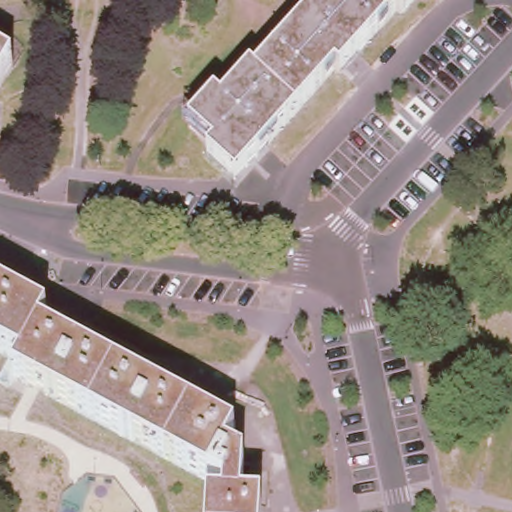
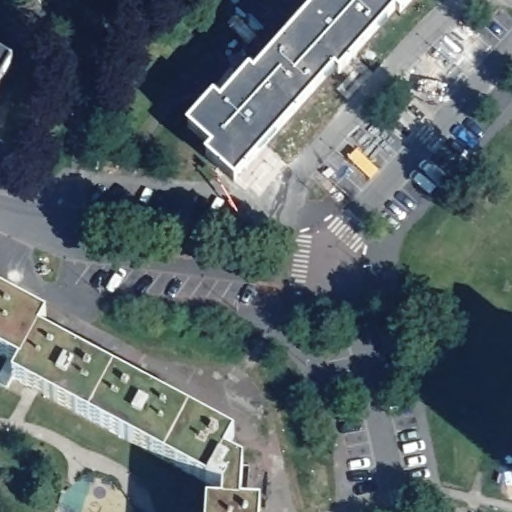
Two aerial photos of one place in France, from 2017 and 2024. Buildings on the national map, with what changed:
unchanged [(208,154),(214,146),(191,125),(216,96),(223,102),(253,70),(257,75),(313,12),(318,15),(331,0),(414,0),(403,12),(398,7),(340,71),(336,67),(236,180),(208,154)]
unchanged [(0,51),(13,59),(0,80),(0,51)]
unchanged [(13,357),(0,350),(0,290),(51,317),(44,331),(141,385),(118,430),(20,376),(14,386),(1,379),(13,357)]
unchanged [(229,454),(247,465),(245,506),(229,505),(230,491),(118,430),(141,385),(238,437),(229,454)]
unchanged [(264,507),(264,512),(214,512),(215,504),(229,505),(245,506),(264,507)]

